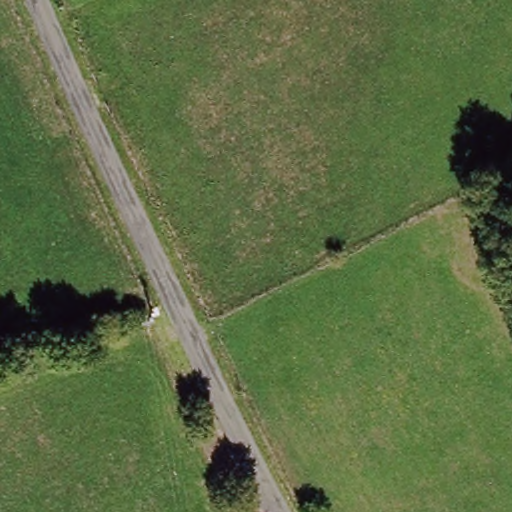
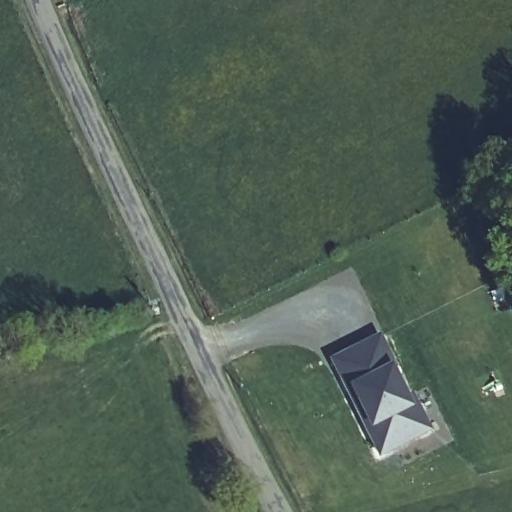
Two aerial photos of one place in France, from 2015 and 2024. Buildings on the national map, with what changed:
new [(385,335),(400,365),(396,368),(416,404),(423,401),(436,426),(388,451),(375,426),(379,424),(359,387),(355,390),(338,360),(385,335)]

